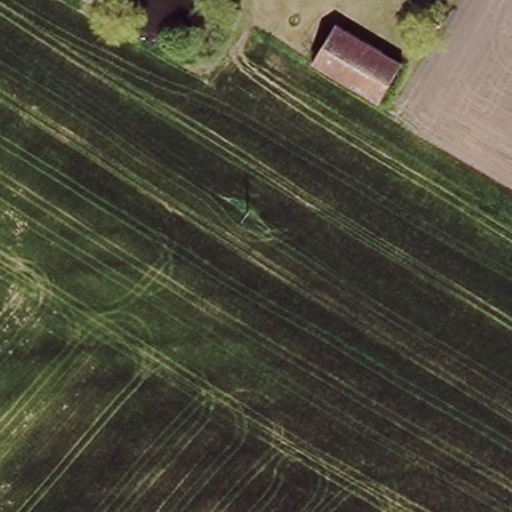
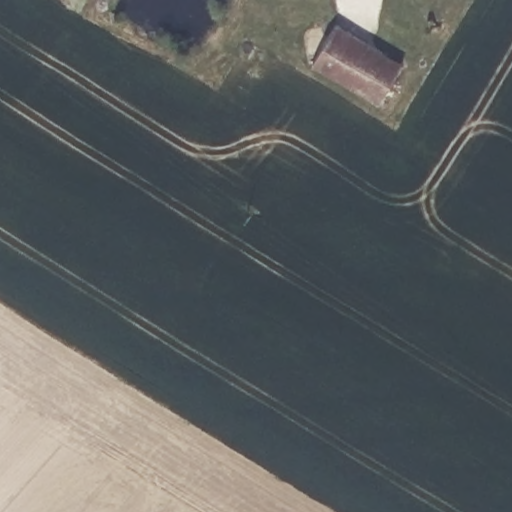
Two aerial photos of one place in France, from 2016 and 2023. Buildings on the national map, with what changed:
unchanged [(399,63),(378,100),(311,64),(331,25),(399,63)]

